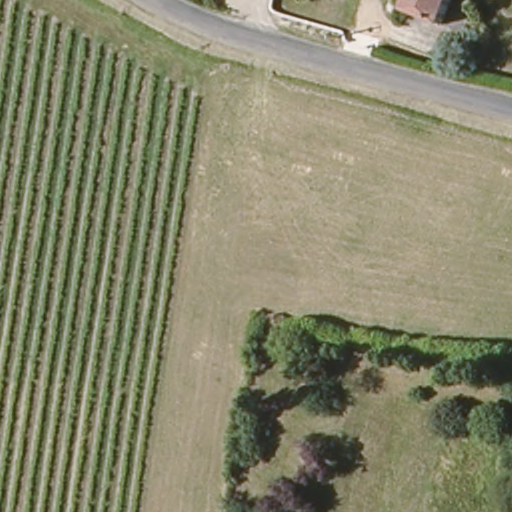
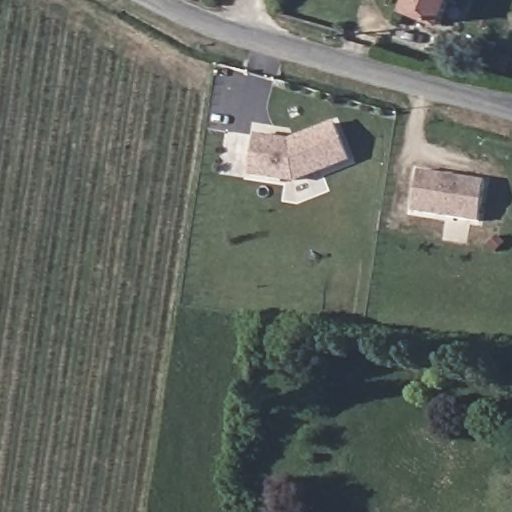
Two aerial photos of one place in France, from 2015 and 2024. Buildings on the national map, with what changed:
unchanged [(405,9),(408,0),(453,0),(444,24),(405,9)]
new [(293,183),(249,176),(256,133),(288,139),(334,121),(350,161),(293,183)]
new [(412,212),(418,171),(486,181),(480,222),(412,212)]

